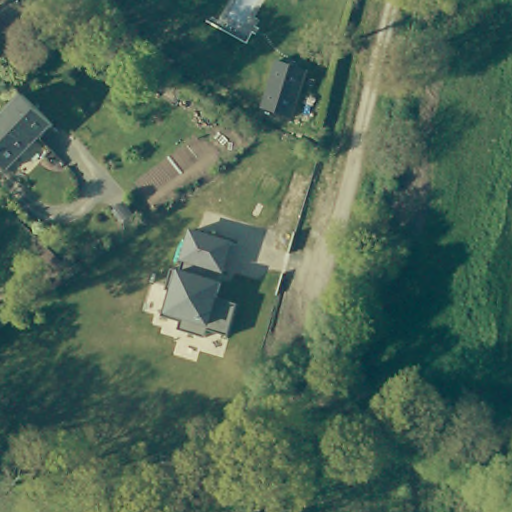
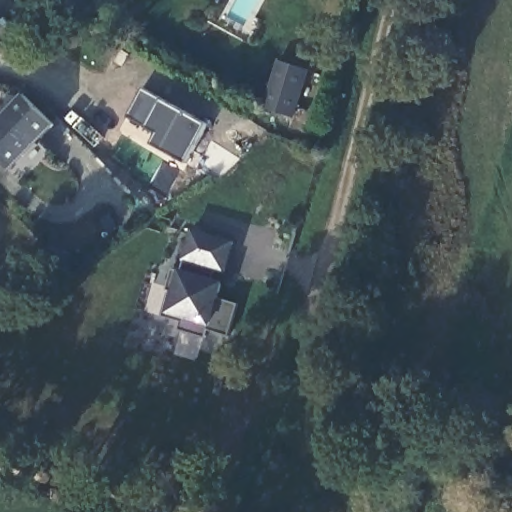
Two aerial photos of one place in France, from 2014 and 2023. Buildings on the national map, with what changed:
unchanged [(283,59),(312,68),(297,116),(268,107),(283,59)]
new [(165,100),(208,124),(186,163),(151,144),(158,133),(148,127),(129,117),(144,90),(165,100)]
unchanged [(38,142),(49,155),(18,185),(0,167),(0,118),(20,97),(51,127),(38,142)]
unchanged [(210,330),(207,337),(178,330),(182,322),(163,316),(177,270),(186,272),(188,263),(182,261),(191,229),(235,242),(226,275),(210,270),(208,277),(222,281),(218,298),(239,305),(230,337),(210,330)]
unchanged [(498,493),(501,490),(505,489),(509,488),(512,490),(512,512),(493,512),(498,493)]

